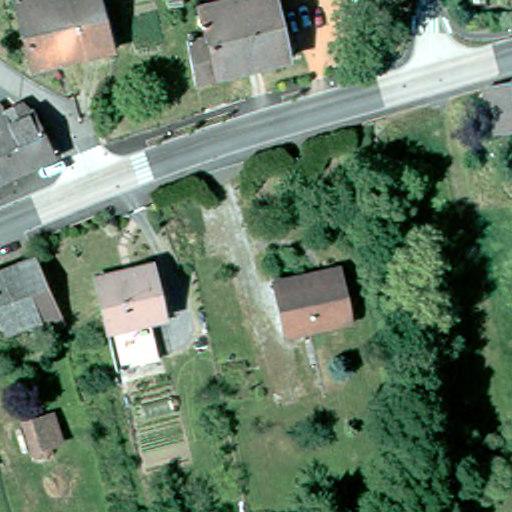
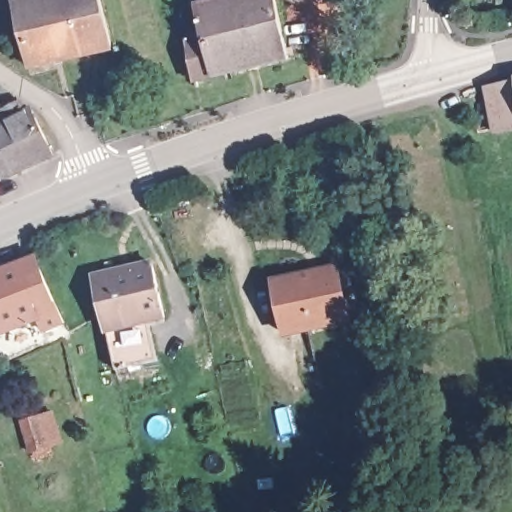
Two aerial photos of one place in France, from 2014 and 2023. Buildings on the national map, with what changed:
unchanged [(30,66),(15,0),(104,0),(115,46),(30,66)]
unchanged [(278,0),(291,54),(201,79),(191,35),(210,30),(204,4),(217,0),(278,0)]
unchanged [(512,79),(512,128),(498,130),(492,84),(491,82),(503,80),(512,79)]
unchanged [(10,124),(40,114),(58,156),(10,177),(0,155),(0,109),(2,108),(10,124)]
unchanged [(0,181),(0,155),(10,177),(0,181)]
unchanged [(50,329),(43,317),(10,330),(0,302),(0,271),(41,258),(70,320),(50,329)]
unchanged [(169,317),(110,329),(107,312),(102,282),(101,273),(136,266),(160,261),(169,317)]
unchanged [(303,333),(290,335),(279,278),(294,275),(319,270),(346,264),(348,274),(354,308),(356,321),(317,329),(303,333)]
unchanged [(23,454),(15,425),(66,409),(74,438),(23,454)]

